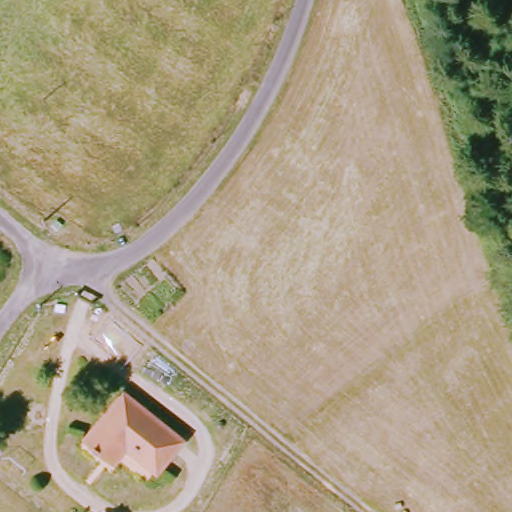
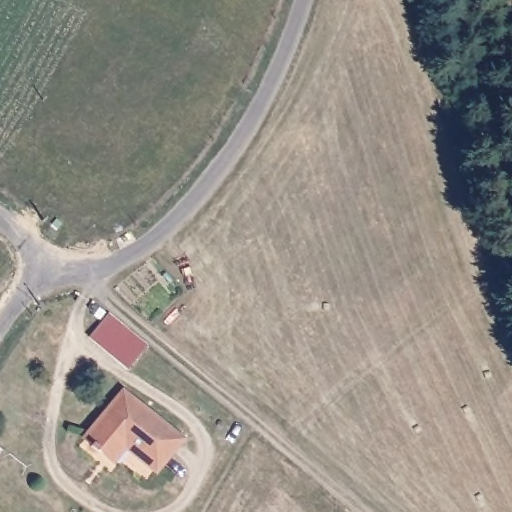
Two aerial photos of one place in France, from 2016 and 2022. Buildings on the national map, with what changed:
new [(89,338),(110,315),(147,346),(128,370),(89,338)]
unchanged [(120,449),(106,464),(78,442),(117,391),(180,440),(150,473),(120,449)]

